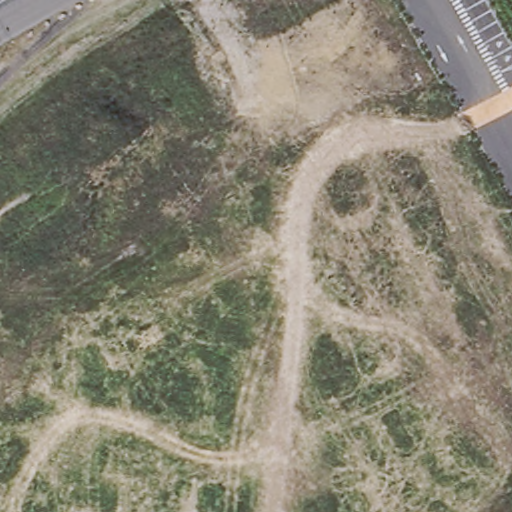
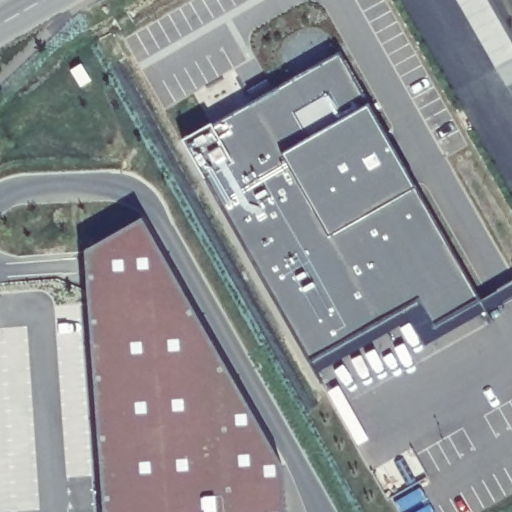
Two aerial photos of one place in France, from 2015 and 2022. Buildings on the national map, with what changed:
new [(213,127),(341,55),(494,325),(493,326),(480,305),(433,331),(419,305),(312,366),(323,387),(322,388),(184,143),(213,127)]
new [(81,68),(91,84),(82,89),(72,73),(81,68)]
new [(143,221),(283,467),(286,512),(105,512),(86,253),(143,221)]

